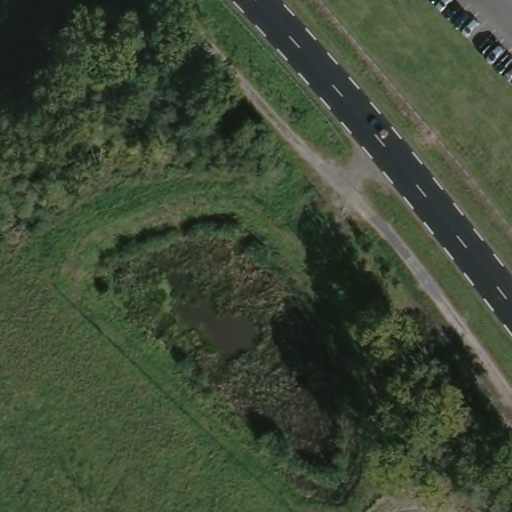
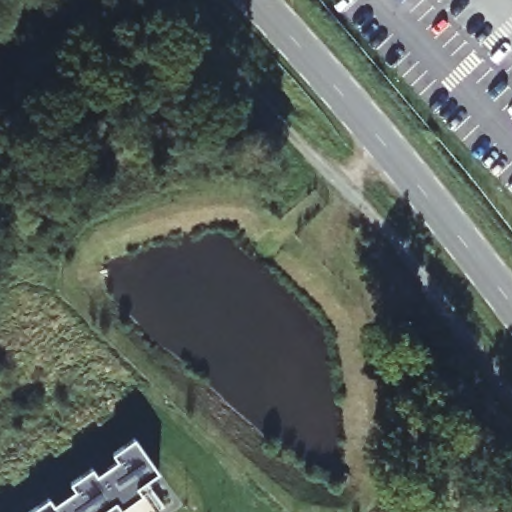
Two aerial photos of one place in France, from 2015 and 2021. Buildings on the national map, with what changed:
new [(45,496),(50,503),(72,488),(67,482),(89,467),(94,473),(115,460),(110,452),(133,437),(157,472),(135,487),(140,495),(118,510),(113,502),(98,512),(24,512),(24,511),(45,496)]

